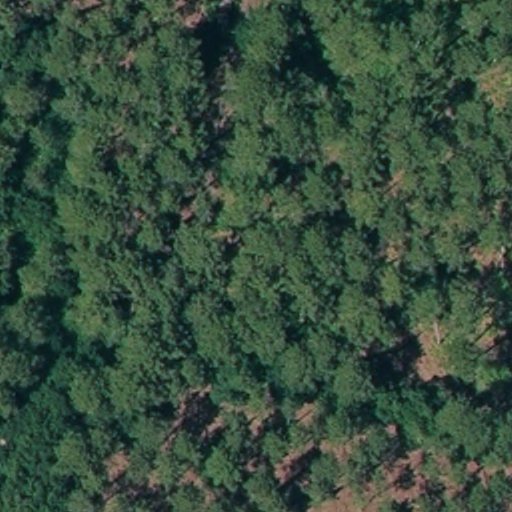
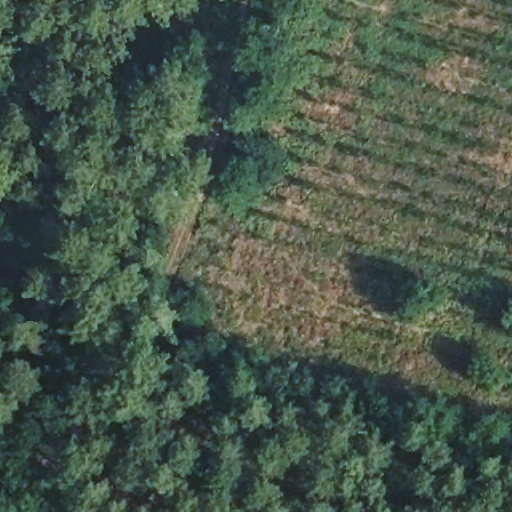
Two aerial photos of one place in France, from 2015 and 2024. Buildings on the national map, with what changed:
[]

